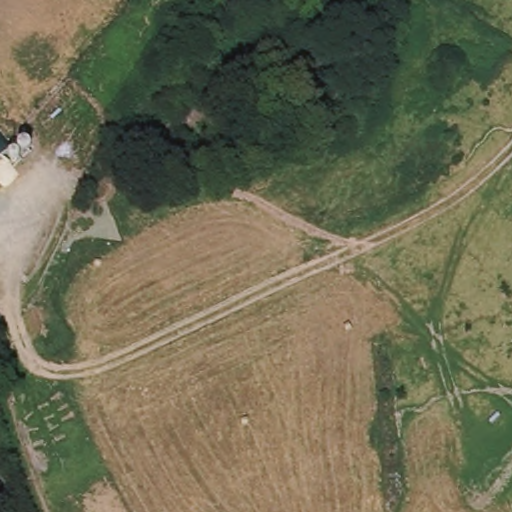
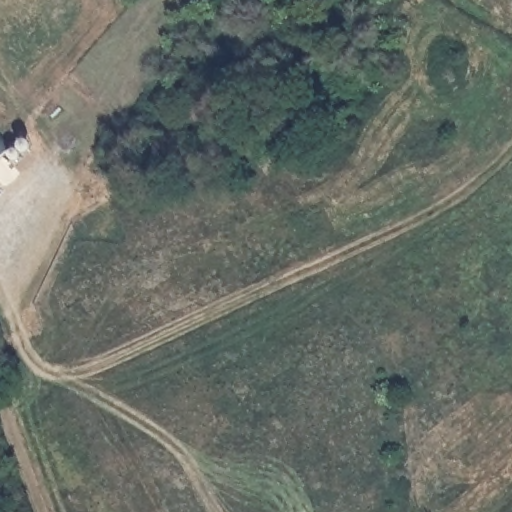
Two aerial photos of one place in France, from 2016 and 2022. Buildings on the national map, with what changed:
unchanged [(8,155),(33,137),(41,148),(16,165),(8,155)]
unchanged [(7,152),(0,159),(0,144),(7,152)]

